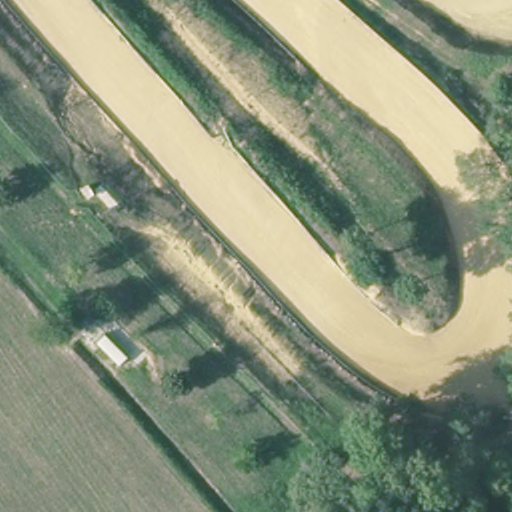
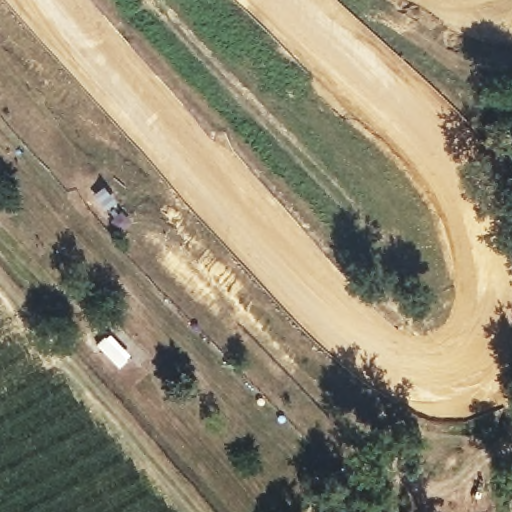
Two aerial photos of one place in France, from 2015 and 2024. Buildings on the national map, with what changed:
unchanged [(92,182),(112,167),(136,192),(114,209),(92,182)]

